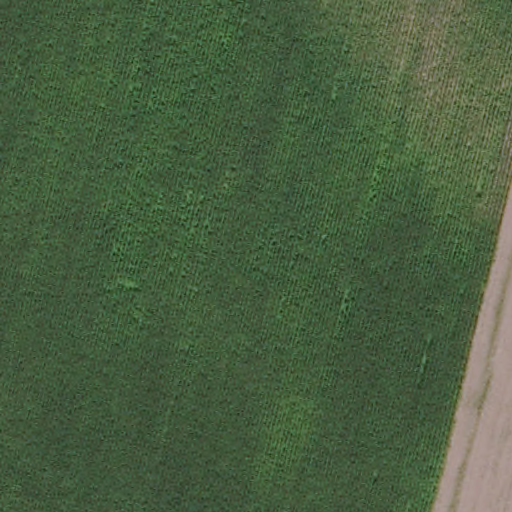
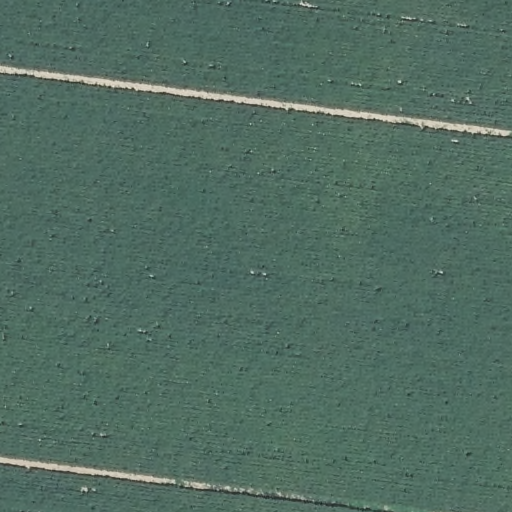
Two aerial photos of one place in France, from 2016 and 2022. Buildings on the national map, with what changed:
[]

